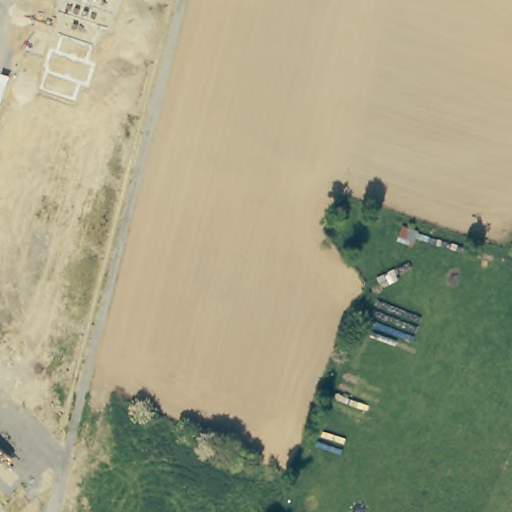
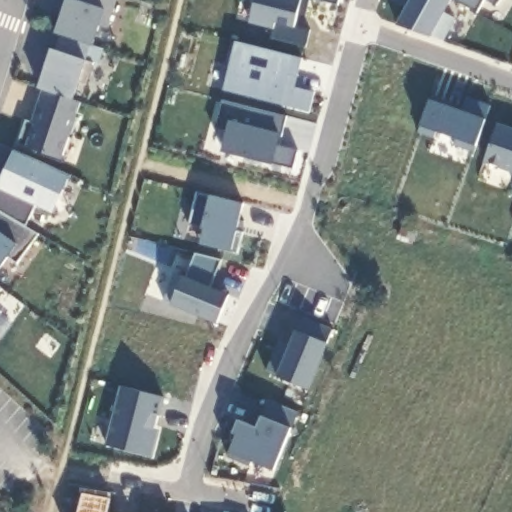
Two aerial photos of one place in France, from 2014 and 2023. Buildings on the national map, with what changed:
new [(26,120),(32,122),(47,91),(38,88),(51,48),(58,50),(64,35),(55,32),(67,0),(80,0),(118,0),(107,28),(100,25),(92,46),(86,61),(91,63),(85,84),(80,82),(74,100),(80,102),(61,158),(26,146),(19,143),(26,120)]
new [(307,16),(299,13),(299,27),(310,31),(307,47),(271,38),(275,30),(251,24),(257,0),(309,0),(307,16)]
new [(338,4),(318,0),(338,0),(338,4)]
new [(432,36),(398,26),(413,0),(453,0),(432,36)]
new [(478,12),(457,0),(485,0),(478,12)]
new [(499,6),(485,0),(502,0),(499,6)]
new [(298,87),(315,93),(309,112),(225,89),(237,42),(303,60),(298,87)]
new [(276,142),(296,148),(290,168),(219,150),(226,129),(212,125),(218,101),(282,116),(276,142)]
new [(485,164),(500,126),(512,130),(512,173),(485,164)]
new [(70,176),(53,213),(35,205),(25,226),(37,235),(16,262),(10,255),(0,269),(0,184),(15,151),(70,176)]
new [(237,234),(242,236),(237,253),(233,252),(200,244),(203,229),(190,226),(198,194),(211,195),(244,204),(237,234)]
new [(171,305),(183,275),(186,276),(196,254),(223,260),(210,287),(229,294),(216,324),(171,305)]
new [(276,375),(268,373),(280,341),(290,344),(297,329),(302,317),(334,329),(328,343),(309,389),(276,375)]
new [(151,457),(106,444),(122,388),(164,398),(151,457)]
new [(250,466),(228,458),(230,453),(237,436),(233,434),(238,421),(240,421),(258,428),(263,416),(268,399),(299,413),(292,429),(273,471),(250,466)]

